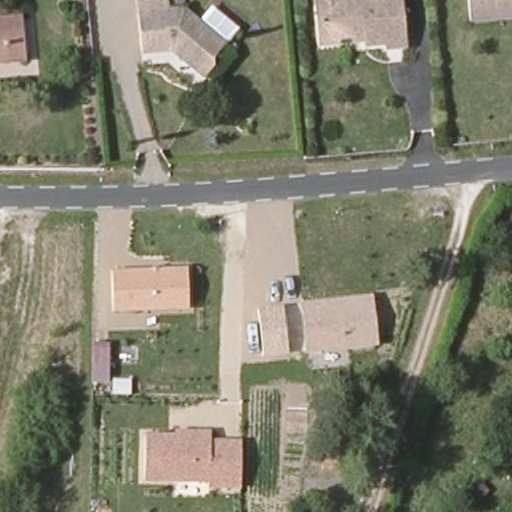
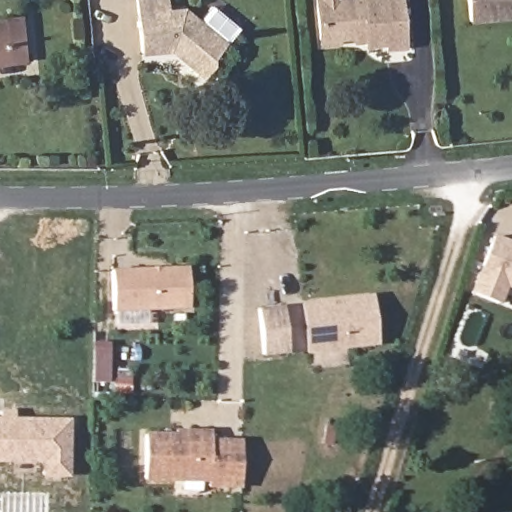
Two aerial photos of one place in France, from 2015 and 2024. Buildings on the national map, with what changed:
unchanged [(139,49),(135,0),(165,0),(166,11),(185,10),(224,43),(215,55),(214,65),(205,77),(169,47),(139,49)]
unchanged [(393,45),(392,41),(372,44),(370,29),(364,30),(359,35),(325,39),(321,0),(405,0),(409,44),(393,45)]
unchanged [(469,21),(467,0),(512,0),(512,17),(509,17),(469,21)]
unchanged [(0,49),(8,49),(6,14),(23,13),(28,55),(0,58),(0,49)]
unchanged [(8,49),(0,49),(0,15),(6,14),(8,49)]
new [(499,305),(469,293),(493,235),(512,243),(512,290),(506,288),(499,305)]
unchanged [(189,310),(114,312),(112,270),(188,266),(189,310)]
unchanged [(289,354),(264,357),(258,308),(284,305),(289,354)]
unchanged [(374,317),(374,362),(308,361),(309,316),(374,317)]
new [(94,342),(115,343),(114,382),(93,382),(94,342)]
new [(40,478),(40,464),(0,463),(0,410),(13,410),(13,417),(70,418),(70,478),(40,478)]
unchanged [(209,481),(145,480),(148,434),(209,432),(209,440),(240,441),(239,490),(209,488),(209,481)]

